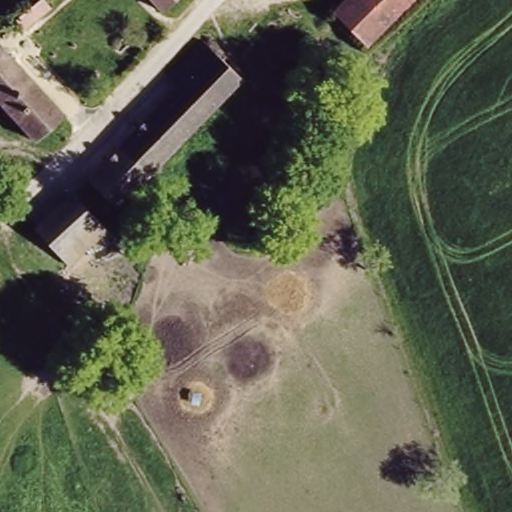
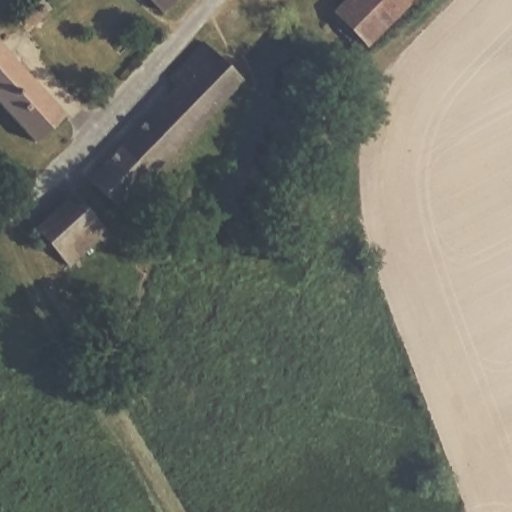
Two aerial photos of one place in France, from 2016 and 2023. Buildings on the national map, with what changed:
unchanged [(25,0),(42,0),(50,8),(29,28),(14,8),(25,0)]
unchanged [(178,0),(162,17),(146,0),(178,0)]
unchanged [(308,27),(340,0),(420,0),(342,67),(308,27)]
unchanged [(244,79),(245,90),(114,209),(82,176),(177,87),(165,74),(199,36),(244,79)]
unchanged [(31,141),(0,106),(0,45),(61,112),(31,141)]
unchanged [(119,239),(107,251),(98,241),(74,265),(32,223),(67,188),(119,239)]

